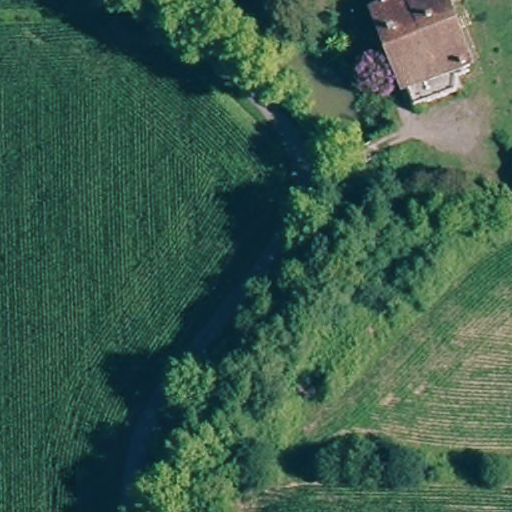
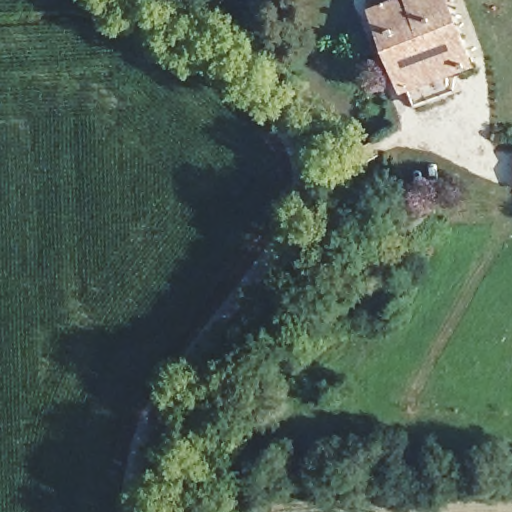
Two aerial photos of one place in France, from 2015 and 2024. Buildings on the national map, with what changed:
unchanged [(408,85),(378,0),(449,0),(472,64),(408,85)]

